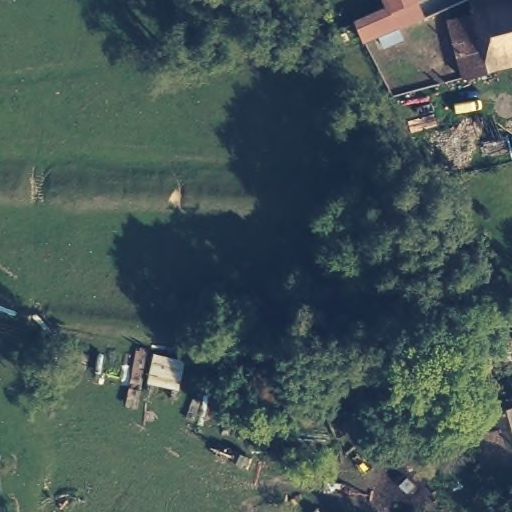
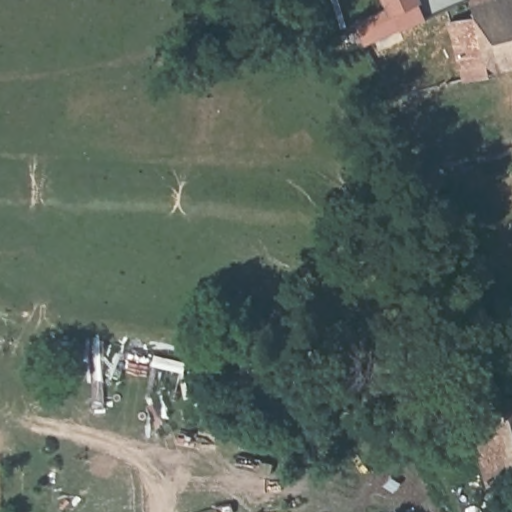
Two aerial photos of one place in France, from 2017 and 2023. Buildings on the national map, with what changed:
unchanged [(387,0),(414,0),(391,9),(387,0)]
unchanged [(480,58),(484,71),(457,76),(443,20),(470,13),(467,2),(476,0),(512,0),(512,51),(480,58)]
unchanged [(512,327),(512,464),(503,467),(504,474),(495,476),(482,478),(471,434),(493,428),(487,406),(494,404),(476,335),(500,330),(512,327)]

